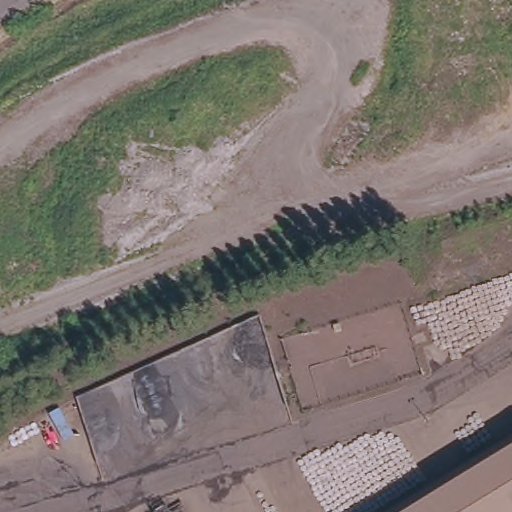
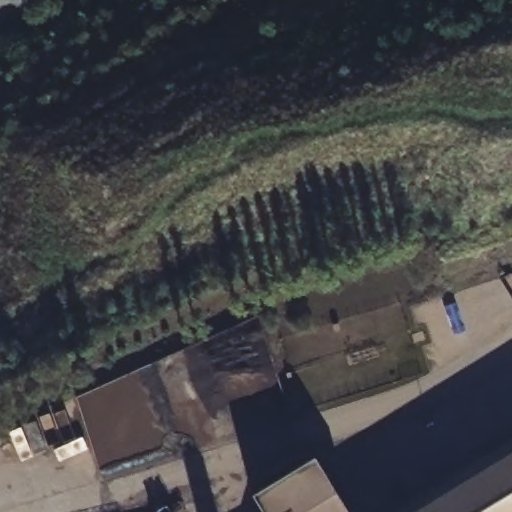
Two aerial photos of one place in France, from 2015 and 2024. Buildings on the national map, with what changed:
unchanged [(512,441),(512,512),(395,512),(512,441)]
new [(349,512),(264,512),(253,493),(314,456),(349,512)]

